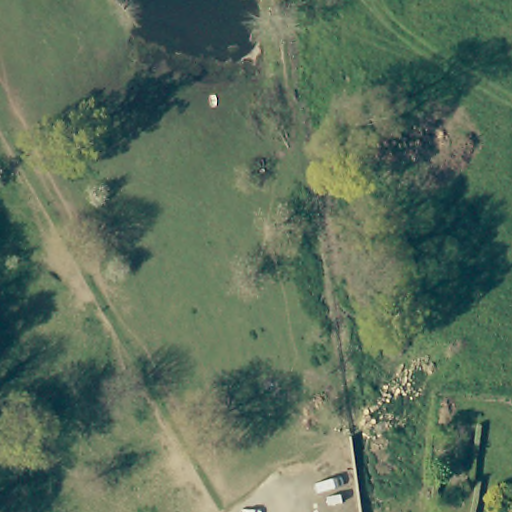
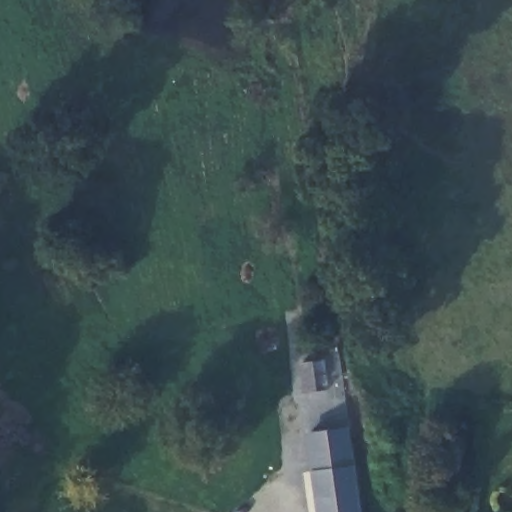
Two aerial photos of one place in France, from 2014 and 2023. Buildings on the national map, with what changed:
new [(306,433),(349,427),(363,512),(318,512),(311,469),(306,433)]

